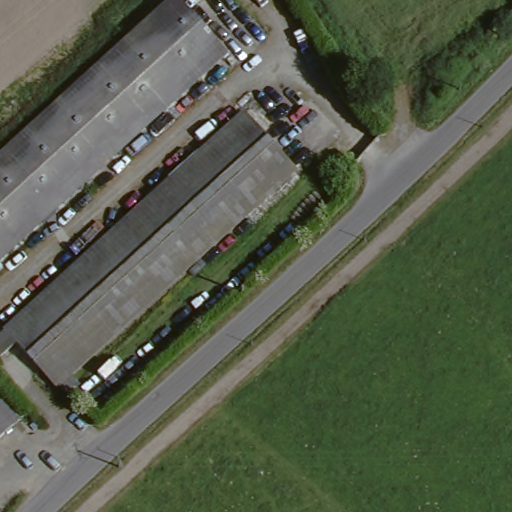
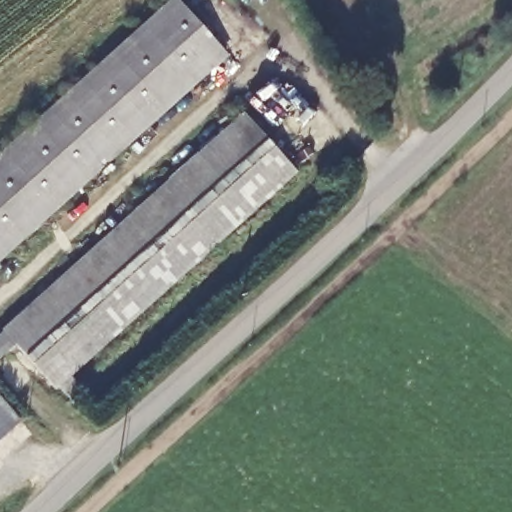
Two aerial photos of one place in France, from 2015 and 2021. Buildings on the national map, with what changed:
unchanged [(231,59),(0,267),(0,163),(180,0),(231,59)]
unchanged [(301,172),(58,389),(20,346),(5,357),(0,361),(0,335),(246,112),(301,172)]
unchanged [(0,446),(0,400),(24,427),(0,446)]

